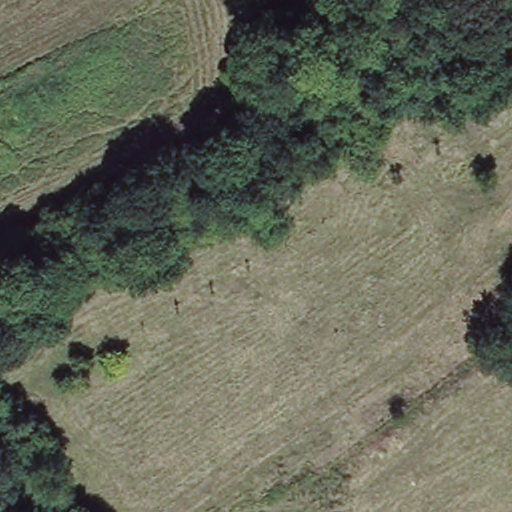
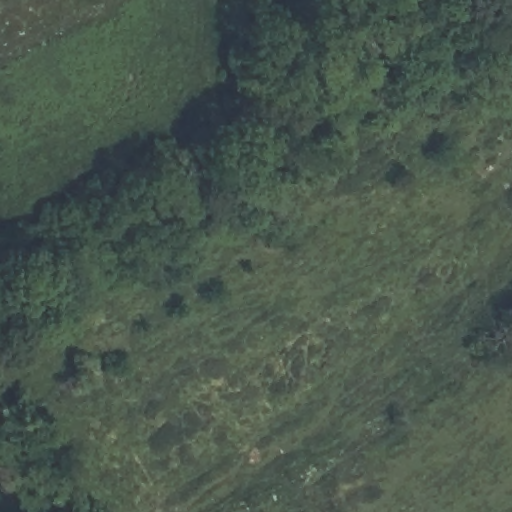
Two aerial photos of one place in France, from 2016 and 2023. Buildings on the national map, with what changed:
[]

